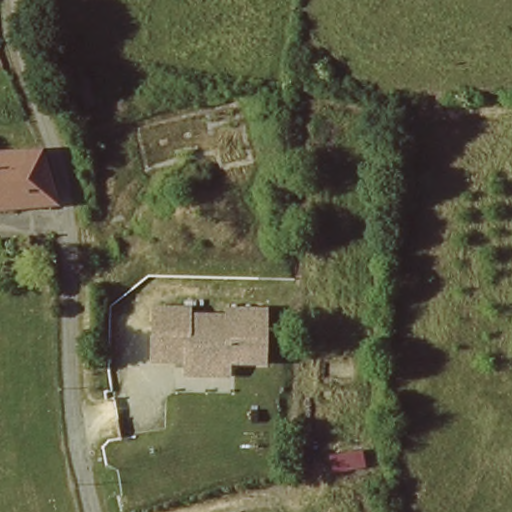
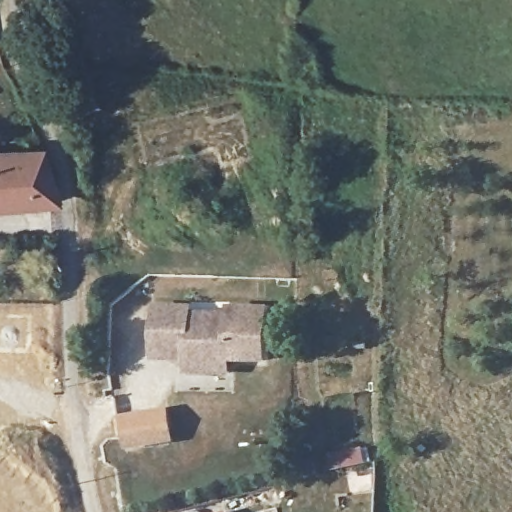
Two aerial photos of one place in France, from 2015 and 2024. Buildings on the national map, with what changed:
unchanged [(0,207),(0,156),(40,154),(43,164),(53,202),(0,207)]
unchanged [(213,319),(213,326),(228,326),(228,307),(264,307),(264,358),(228,358),(228,366),(205,366),(205,358),(152,358),(153,307),(188,306),(188,319),(213,319)]
new [(169,408),(175,444),(127,455),(119,417),(169,408)]

